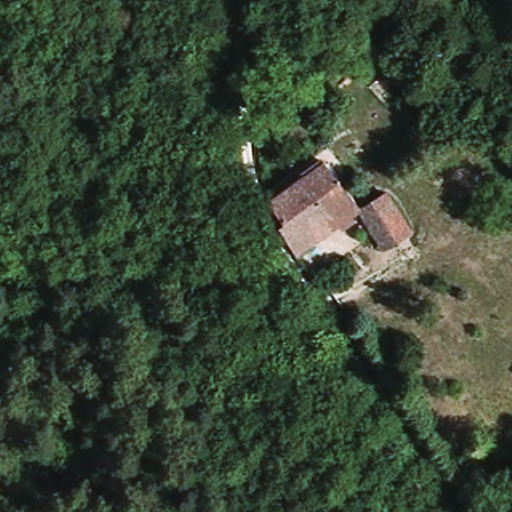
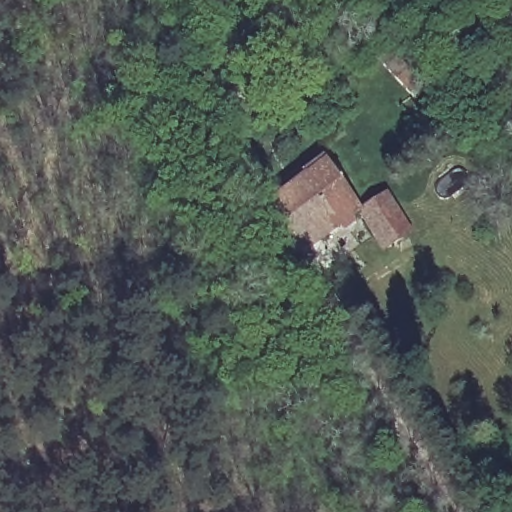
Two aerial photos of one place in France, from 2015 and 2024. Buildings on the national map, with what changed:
unchanged [(384,54),(393,46),(427,85),(420,92),(415,96),(380,57),(384,54)]
unchanged [(322,93),(315,86),(327,77),(332,85),(322,93)]
unchanged [(287,224),(272,204),(273,203),(267,195),(297,174),(303,182),(327,165),(362,213),(298,258),(280,228),(287,224)]
unchanged [(380,244),(362,213),(387,198),(405,227),(411,237),(386,253),(380,244)]

